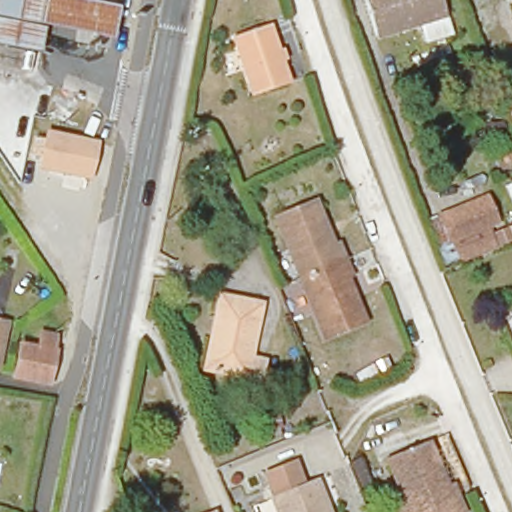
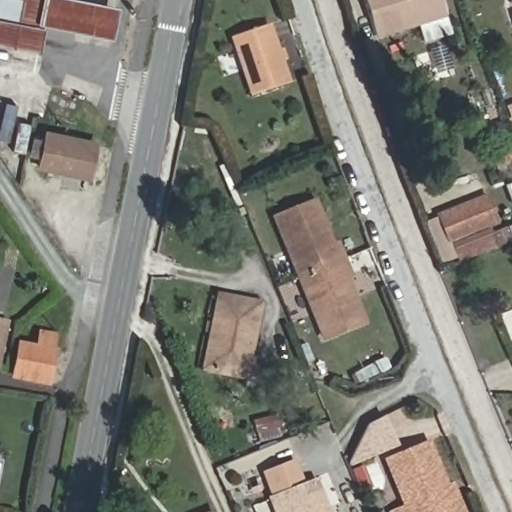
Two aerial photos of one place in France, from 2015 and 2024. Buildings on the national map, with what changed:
unchanged [(36,47),(0,40),(0,0),(47,0),(42,20),(36,47)]
unchanged [(47,0),(116,0),(121,1),(114,35),(42,20),(47,0)]
unchanged [(375,32),(364,0),(442,0),(445,11),(375,32)]
unchanged [(508,0),(512,0),(512,5),(507,2),(508,0)]
unchanged [(512,11),(512,19),(510,11),(512,11)]
unchanged [(255,90),(235,34),(271,23),(288,81),(255,90)]
unchanged [(91,136),(85,169),(39,160),(44,128),(91,136)]
unchanged [(433,212),(490,187),(502,220),(491,225),(501,246),(453,258),(433,212)]
unchanged [(302,276),(278,215),(317,200),(333,244),(340,241),(347,260),(302,276)]
unchanged [(353,272),(347,277),(362,320),(324,333),(302,276),(347,260),(353,272)]
unchanged [(222,295),(262,301),(252,373),(217,370),(210,369),(212,357),(222,295)]
unchanged [(7,315),(0,346),(0,313),(7,315)]
unchanged [(15,373),(21,340),(40,342),(43,327),(57,330),(46,379),(15,373)]
new [(349,462),(369,424),(386,416),(399,447),(352,468),(349,462)]
unchanged [(397,504),(378,460),(418,442),(438,485),(446,481),(459,512),(382,512),(382,511),(397,504)]
unchanged [(285,512),(275,490),(266,468),(300,454),(308,475),(319,471),(338,512),(285,512)]

